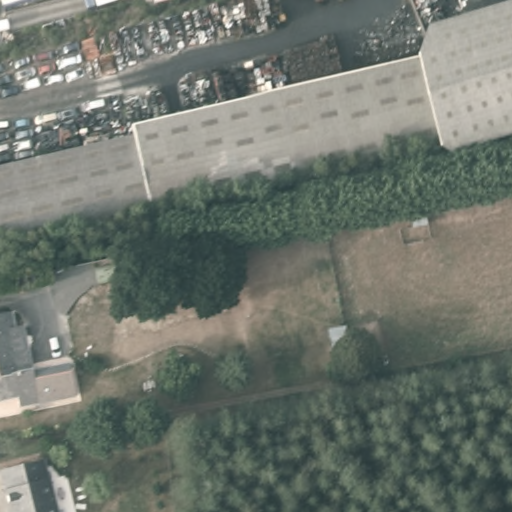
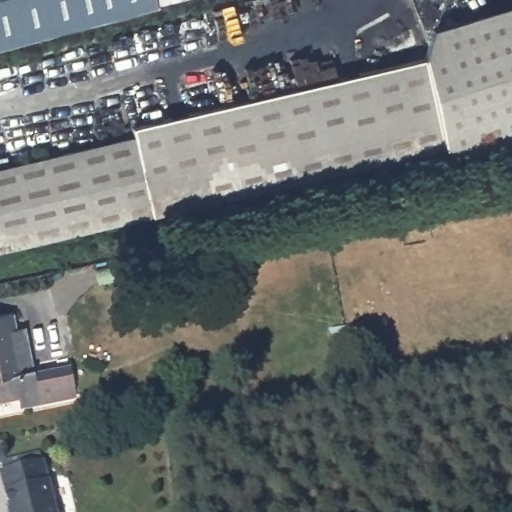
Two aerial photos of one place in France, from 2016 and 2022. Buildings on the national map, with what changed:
new [(156,5),(158,7),(0,50),(0,0),(155,0),(156,5)]
unchanged [(155,0),(174,0),(156,5),(155,0)]
unchanged [(470,145),(433,25),(439,24),(512,1),(512,132),(493,138),(470,145)]
unchanged [(133,131),(130,120),(424,54),(444,143),(0,246),(0,162),(133,131)]
unchanged [(80,395),(25,406),(24,398),(0,402),(0,315),(15,312),(19,328),(29,326),(39,370),(74,363),(80,395)]
unchanged [(347,334),(349,346),(351,345),(355,366),(338,368),(334,348),(331,348),(329,337),(347,334)]
unchanged [(57,512),(11,512),(10,506),(8,506),(0,469),(44,459),(57,512)]

